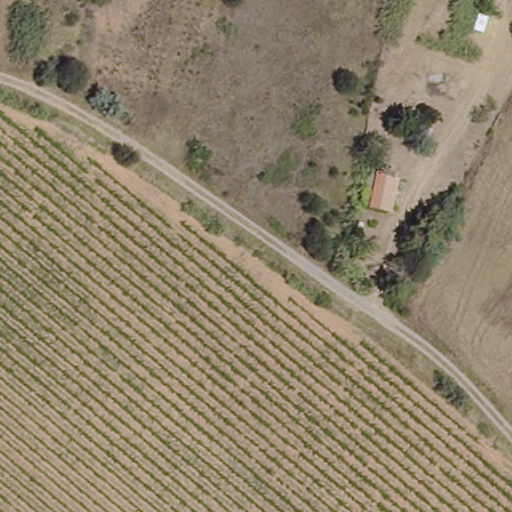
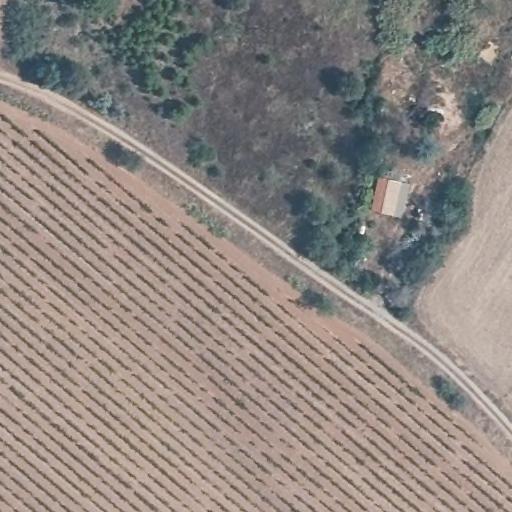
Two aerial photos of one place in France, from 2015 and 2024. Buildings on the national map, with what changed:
unchanged [(378,204),(384,175),(404,179),(399,208),(378,204)]

